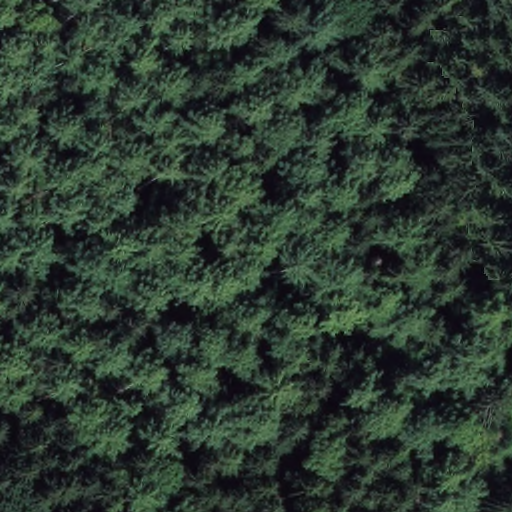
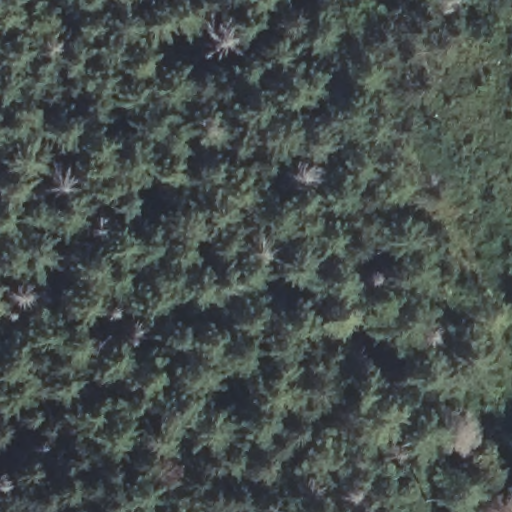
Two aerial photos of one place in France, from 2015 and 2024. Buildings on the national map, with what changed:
[]

